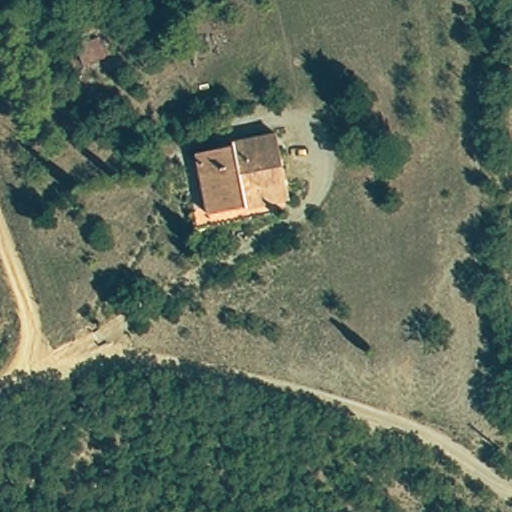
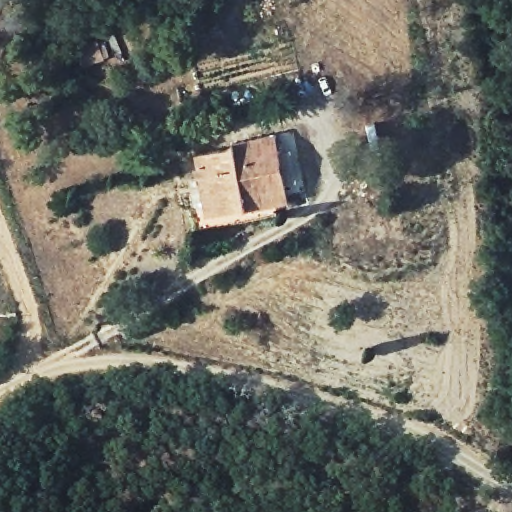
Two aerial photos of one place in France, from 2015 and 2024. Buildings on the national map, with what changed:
unchanged [(72,44),(97,40),(105,62),(80,68),(72,44)]
unchanged [(245,208),(205,215),(195,154),(235,147),(234,140),(277,133),(285,184),(289,201),(245,208)]

